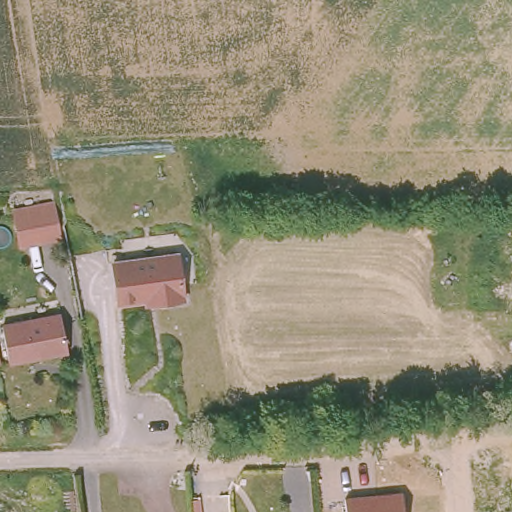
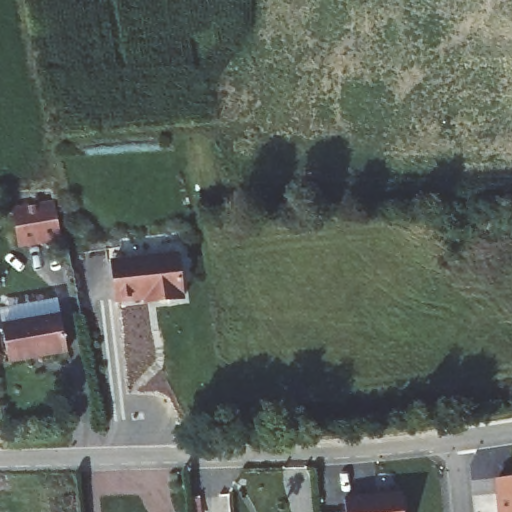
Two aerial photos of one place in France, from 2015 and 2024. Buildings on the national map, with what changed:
unchanged [(55,202),(62,237),(22,244),(16,209),(55,202)]
unchanged [(145,294),(116,299),(110,259),(174,248),(182,292),(157,296),(145,298),(145,294)]
unchanged [(67,350),(7,359),(1,323),(60,314),(67,350)]
new [(512,512),(497,512),(496,478),(512,477),(512,512)]
unchanged [(399,491),(401,512),(349,512),(348,499),(399,491)]

